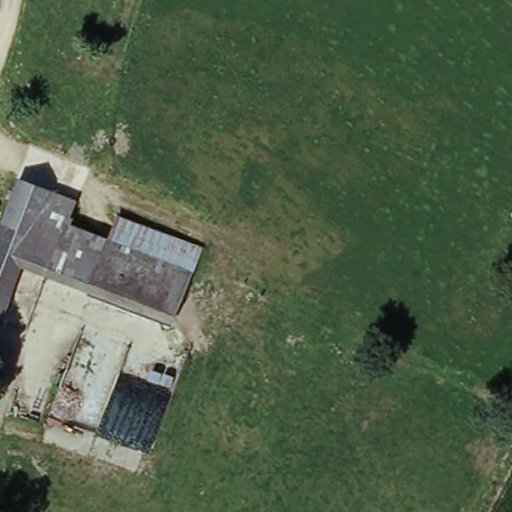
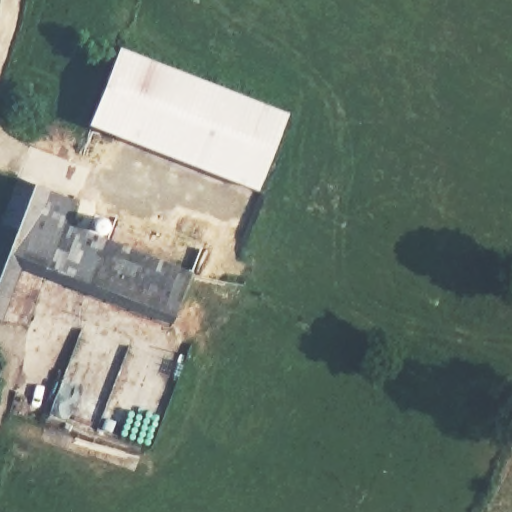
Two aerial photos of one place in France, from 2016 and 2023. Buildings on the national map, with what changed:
new [(288,120),(257,200),(84,132),(117,51),(288,120)]
unchanged [(59,286),(50,283),(20,272),(6,313),(0,312),(0,214),(14,178),(78,199),(70,224),(111,241),(115,232),(201,261),(195,276),(193,284),(180,326),(61,286),(59,286)]
unchanged [(115,232),(119,219),(202,248),(201,261),(115,232)]

